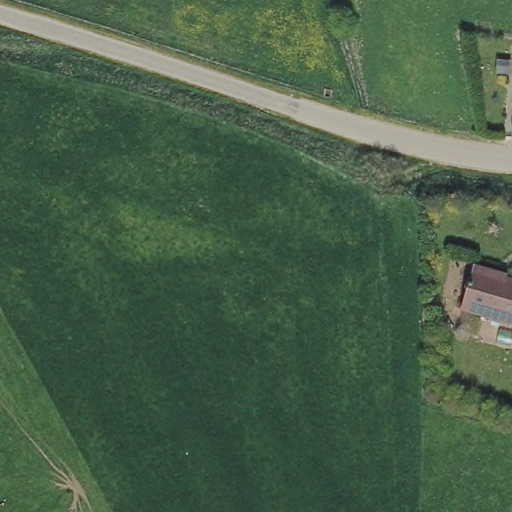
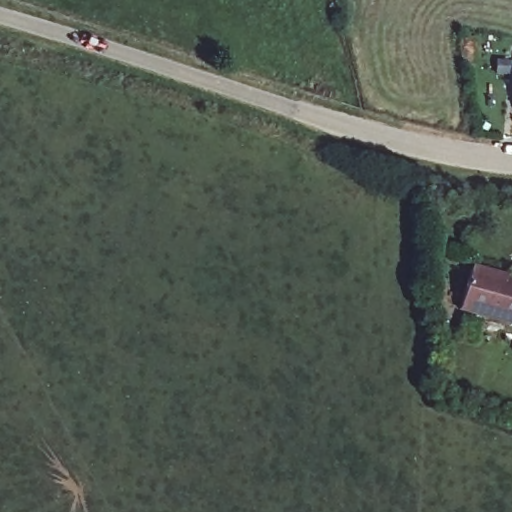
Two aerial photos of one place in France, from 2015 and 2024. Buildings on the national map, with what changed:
unchanged [(498,272),(495,277),(512,282),(512,325),(462,307),(477,264),(498,272)]

